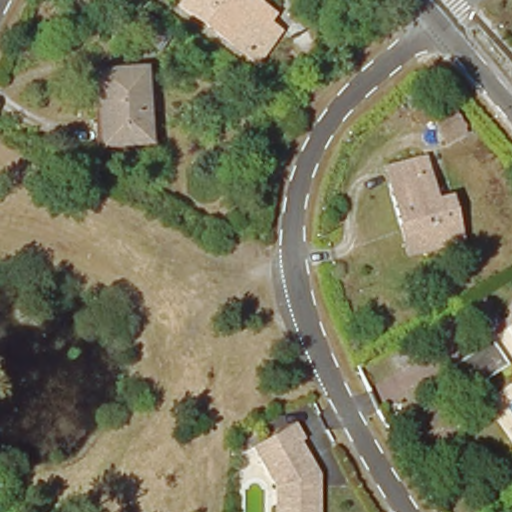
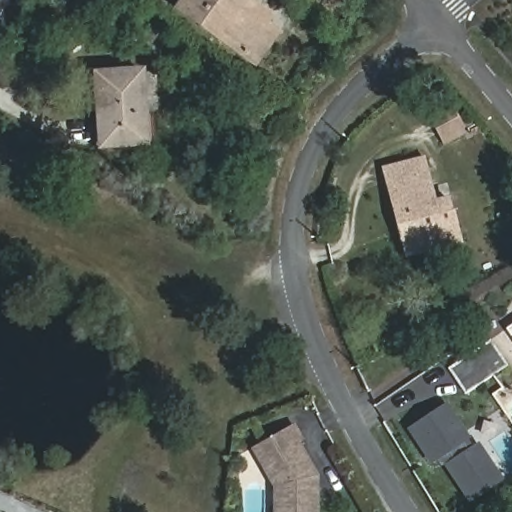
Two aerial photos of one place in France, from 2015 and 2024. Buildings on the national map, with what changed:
unchanged [(261,23),(273,32),(253,61),(176,7),(181,0),(245,0),(266,15),(261,23)]
unchanged [(159,46),(137,31),(148,15),(170,30),(159,46)]
unchanged [(148,143),(103,146),(99,75),(144,72),(148,143)]
unchanged [(447,142),(435,118),(452,109),(464,134),(447,142)]
unchanged [(410,253),(388,168),(425,159),(437,205),(449,201),(459,240),(410,253)]
unchanged [(510,328),(512,327),(512,331),(510,328)]
unchanged [(468,394),(450,368),(491,340),(509,366),(468,394)]
new [(436,462),(414,429),(449,406),(471,439),(475,445),(479,443),(503,478),(473,498),(449,463),(445,456),(436,462)]
unchanged [(263,469),(253,455),(265,447),(290,428),(301,443),(298,445),(320,476),(319,486),(317,512),(278,512),(279,492),(263,469)]

